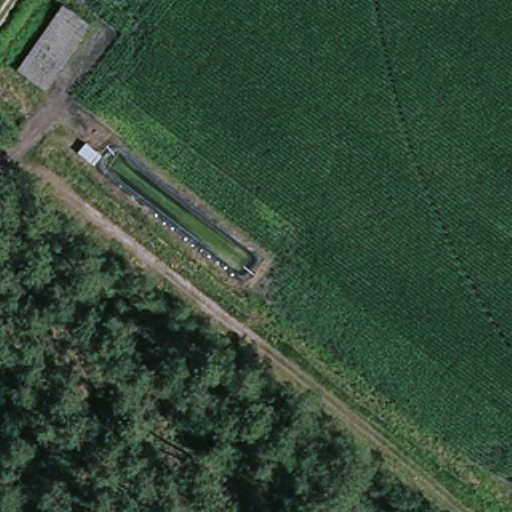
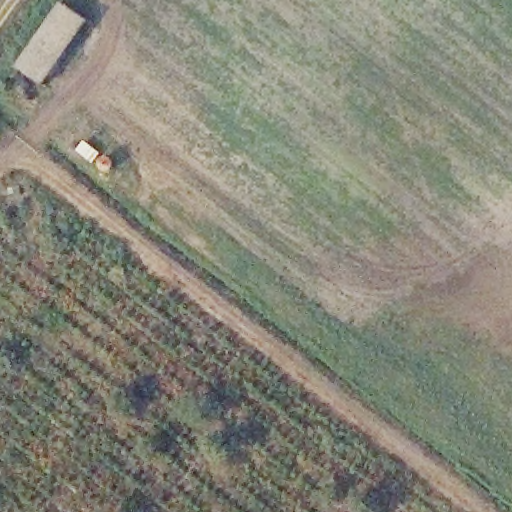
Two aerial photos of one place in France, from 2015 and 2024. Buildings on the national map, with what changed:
unchanged [(99,19),(52,86),(20,62),(63,0),(73,0),(99,19)]

